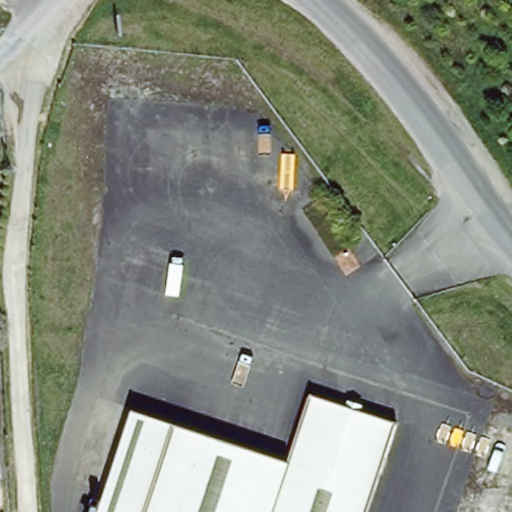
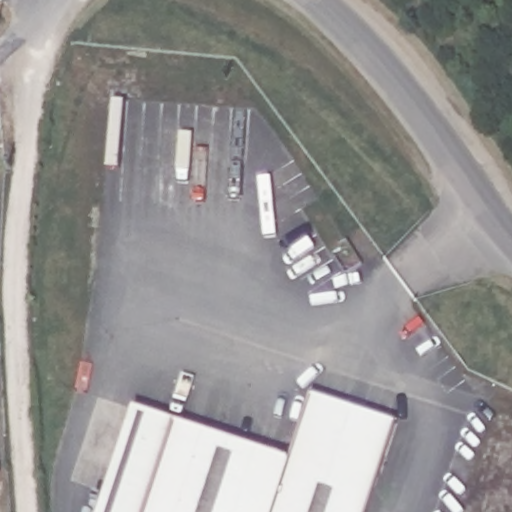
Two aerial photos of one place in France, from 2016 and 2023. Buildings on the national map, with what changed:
unchanged [(93,507),(95,501),(87,499),(89,494),(97,496),(126,407),(284,458),(305,393),(342,405),(345,398),(355,401),(352,408),(391,420),(359,512),(84,512),(87,505),(93,507)]

